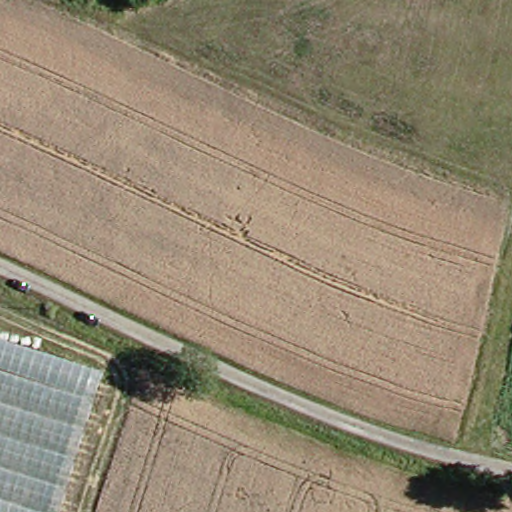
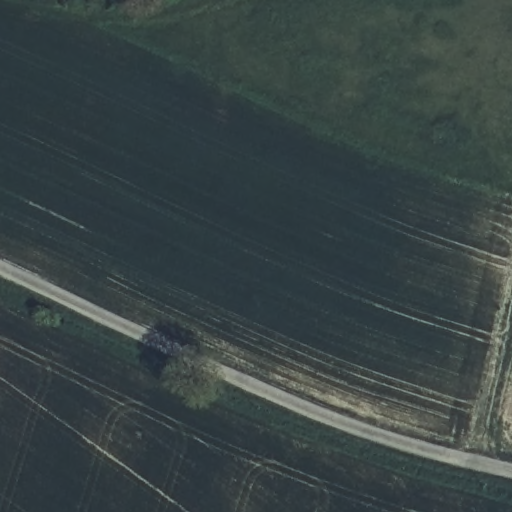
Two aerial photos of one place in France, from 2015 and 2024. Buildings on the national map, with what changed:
demolished [(101,373),(59,512),(0,512),(0,342),(101,373)]

